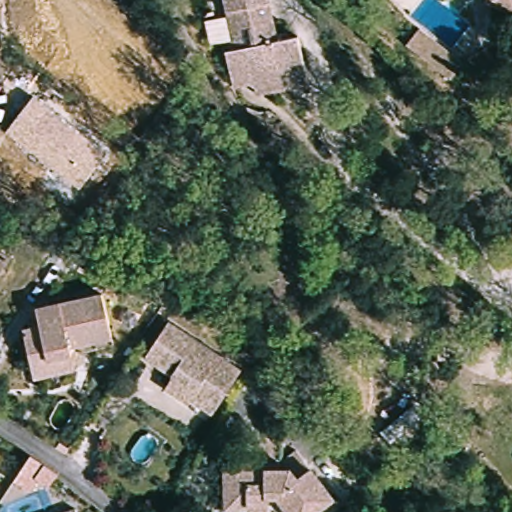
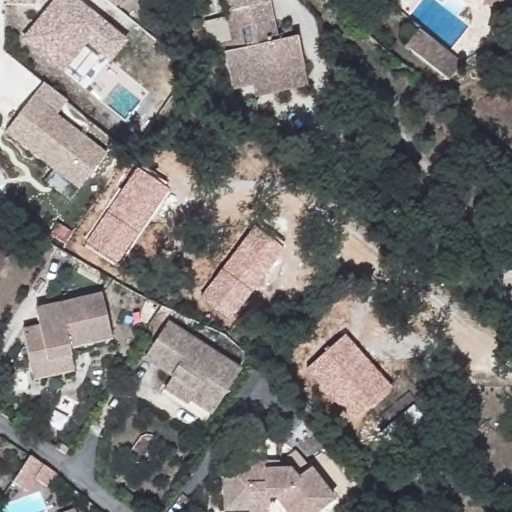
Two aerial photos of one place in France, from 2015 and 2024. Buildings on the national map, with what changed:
new [(78,0),(123,37),(108,56),(85,36),(61,65),(23,34),(51,0),(78,0)]
new [(109,0),(121,0),(116,6),(109,0)]
unchanged [(257,84),(238,88),(236,78),(228,44),(237,42),(228,0),(273,0),(281,35),(290,33),(291,39),(302,37),(310,73),(312,84),(259,96),(257,84)]
unchanged [(487,2),(488,0),(512,0),(512,11),(487,2)]
unchanged [(422,28),(462,65),(449,80),(408,43),(422,28)]
unchanged [(107,152),(81,187),(8,132),(34,95),(107,152)]
new [(118,264),(86,242),(137,168),(169,190),(118,264)]
new [(231,319),(201,297),(255,225),(285,247),(231,319)]
unchanged [(0,272),(0,253),(9,259),(0,272)]
unchanged [(33,379),(30,364),(22,330),(39,327),(35,309),(101,295),(111,338),(69,348),(71,355),(74,370),(33,379)]
unchanged [(164,391),(172,379),(144,360),(169,324),(239,372),(209,416),(188,402),(186,406),(164,391)]
new [(355,423),(306,368),(345,334),(393,388),(355,423)]
new [(48,486),(35,478),(27,491),(13,482),(30,456),(43,465),(56,474),(48,486)]
unchanged [(248,502),(247,502),(247,505),(225,505),(224,459),(267,458),(267,465),(289,465),(296,474),(309,465),(332,494),(308,512),(290,512),(276,492),(268,492),(268,501),(267,501),(267,512),(248,512),(248,502)]
unchanged [(76,510),(77,512),(70,512),(76,510)]

